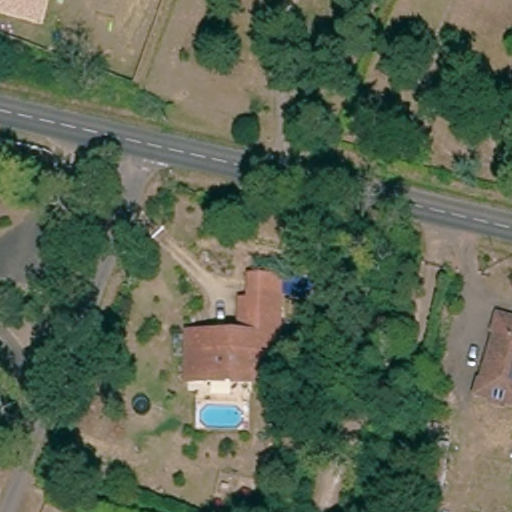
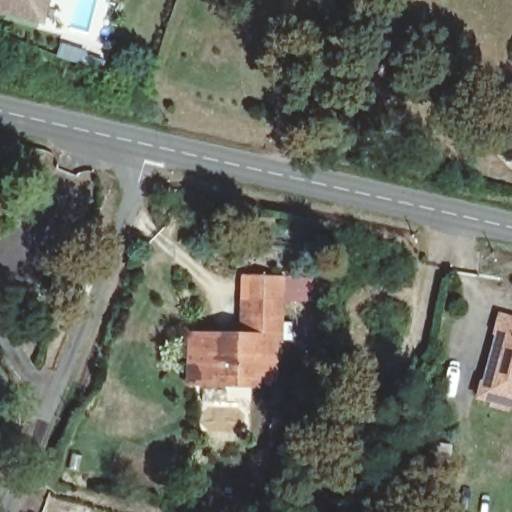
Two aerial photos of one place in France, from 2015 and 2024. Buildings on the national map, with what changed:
unchanged [(49,0),(41,25),(0,16),(0,0),(49,0)]
unchanged [(237,317),(239,298),(247,298),(247,276),(283,278),(284,319),(237,317)]
unchanged [(184,337),(233,335),(237,317),(284,319),(281,390),(183,390),(184,337)]
unchanged [(512,405),(497,402),(498,397),(483,395),(486,378),(491,379),(494,363),(501,364),(503,351),(496,350),(499,333),(496,332),(499,317),(512,320),(512,405)]

